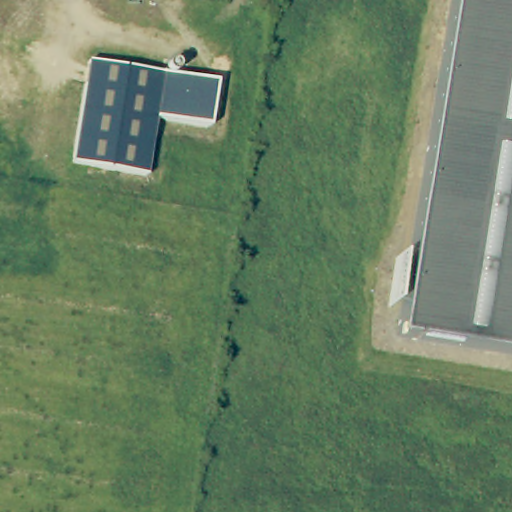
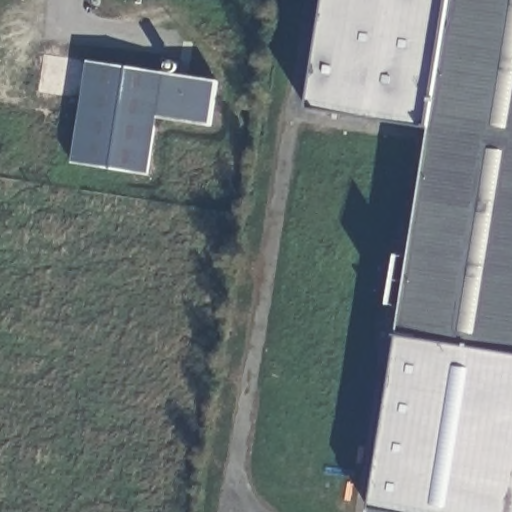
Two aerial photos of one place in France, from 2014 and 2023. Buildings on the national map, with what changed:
new [(307,109),(324,0),(451,0),(430,128),(307,109)]
unchanged [(396,338),(437,85),(451,0),(512,0),(512,355),(396,338)]
unchanged [(210,126),(155,118),(145,174),(72,163),(88,62),(217,82),(210,126)]
new [(371,509),(396,338),(512,355),(512,512),(390,512),(371,509)]

